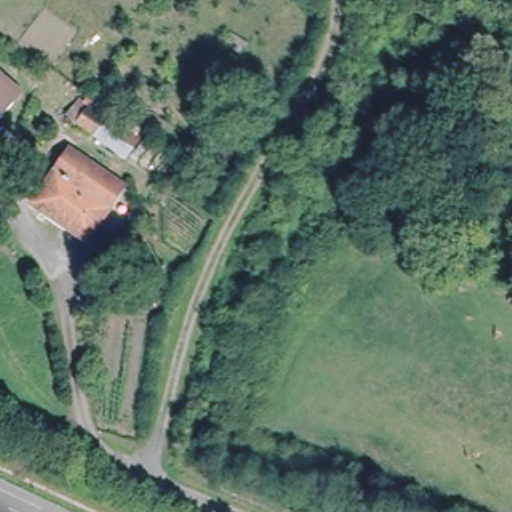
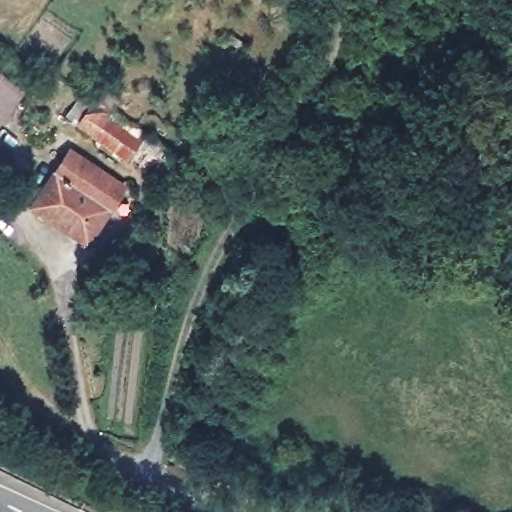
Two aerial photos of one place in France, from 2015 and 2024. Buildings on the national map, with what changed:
unchanged [(12,94),(0,108),(0,82),(12,94)]
unchanged [(146,132),(130,157),(81,125),(69,117),(78,105),(90,112),(97,101),(146,132)]
unchanged [(81,237),(25,201),(59,149),(115,185),(81,237)]

